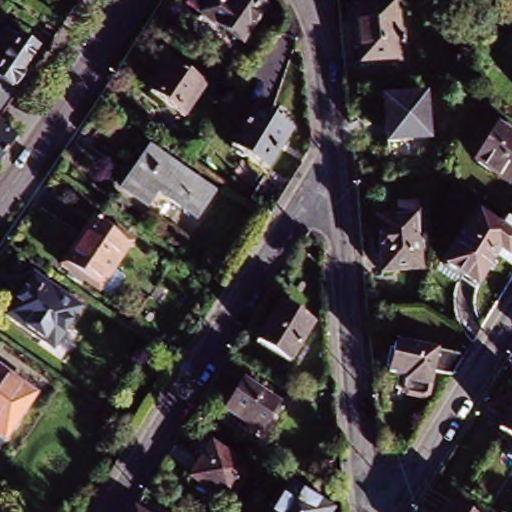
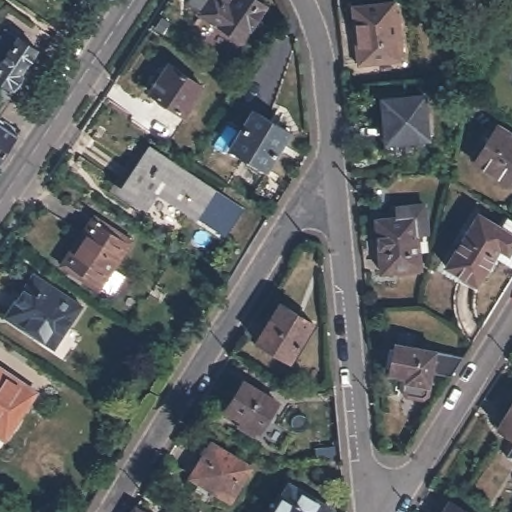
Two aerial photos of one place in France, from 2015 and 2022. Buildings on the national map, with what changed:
unchanged [(188,0),(252,0),(265,8),(240,45),(183,6),(188,0)]
unchanged [(402,60),(358,62),(354,11),(399,7),(402,60)]
unchanged [(37,49),(13,87),(20,91),(7,111),(1,119),(0,121),(0,37),(6,28),(37,49)]
unchanged [(201,87),(182,116),(148,94),(167,65),(201,87)]
unchanged [(426,141),(382,145),(379,102),(423,99),(426,141)]
unchanged [(287,134),(262,171),(227,148),(252,111),(287,134)]
unchanged [(0,165),(0,125),(19,137),(0,165)]
unchanged [(512,138),(512,174),(506,183),(474,162),(496,128),(512,138)]
unchanged [(212,194),(196,218),(159,194),(148,210),(120,190),(147,150),(212,194)]
unchanged [(374,272),(370,222),(392,220),(391,207),(418,206),(422,236),(411,237),(413,269),(374,272)]
unchanged [(128,242),(96,290),(59,265),(91,218),(128,242)]
unchanged [(494,258),(475,287),(445,268),(476,218),(497,231),(505,218),(512,223),(512,269),(494,258)]
unchanged [(80,303),(50,348),(4,316),(34,273),(80,303)]
unchanged [(311,326),(287,365),(253,343),(277,305),(311,326)]
unchanged [(427,385),(405,381),(405,376),(389,373),(396,341),(434,349),(427,385)]
unchanged [(2,439),(0,438),(0,372),(32,394),(2,439)]
unchanged [(236,425),(240,420),(223,409),(242,380),(277,403),(258,432),(256,431),(253,436),(236,425)]
unchanged [(495,430),(512,403),(512,440),(495,430)]
unchanged [(246,467),(225,502),(185,477),(206,442),(246,467)]
unchanged [(340,458),(319,461),(317,448),(339,444),(340,458)]
unchanged [(321,512),(267,512),(285,484),(323,509),(321,512)]
unchanged [(442,512),(446,505),(457,512),(442,512)]
unchanged [(134,512),(128,512),(130,509),(134,512)]

